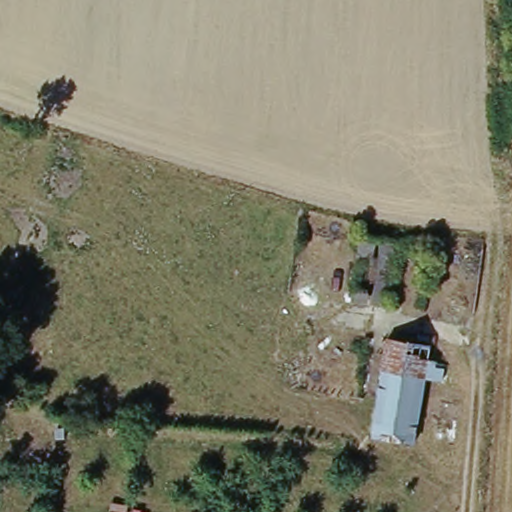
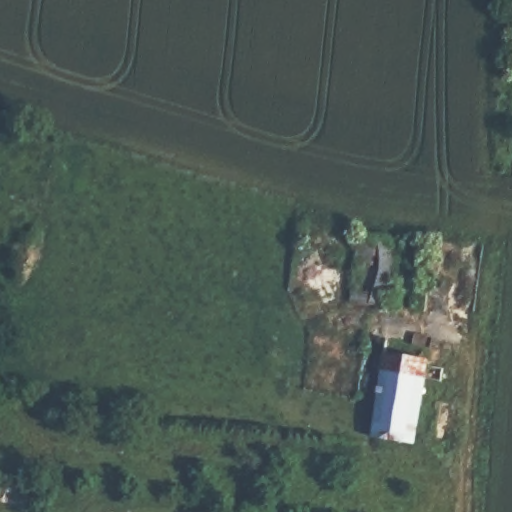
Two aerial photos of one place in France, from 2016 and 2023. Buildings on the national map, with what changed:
unchanged [(427,367),(442,370),(440,382),(423,380),(413,444),(372,437),(386,353),(388,340),(429,346),(426,360),(428,360),(427,367)]

